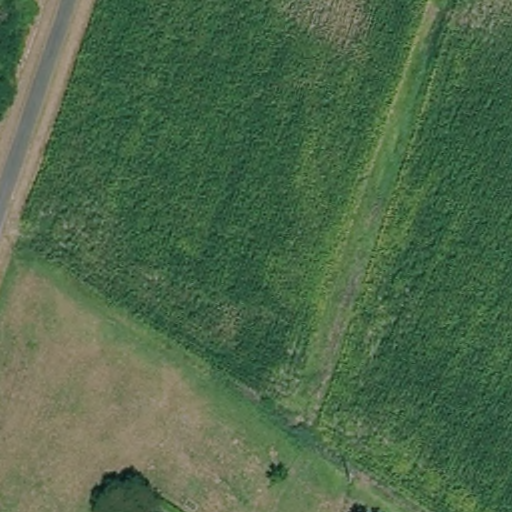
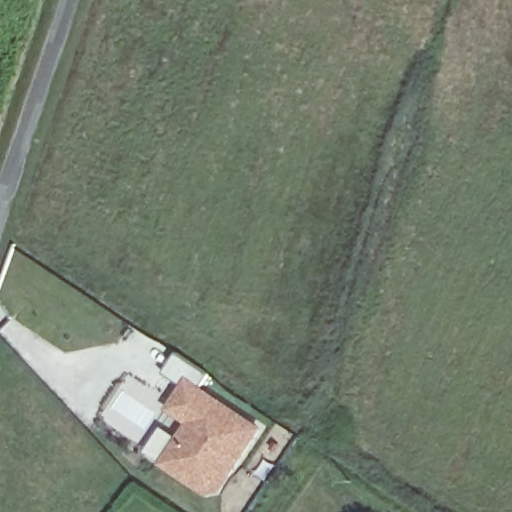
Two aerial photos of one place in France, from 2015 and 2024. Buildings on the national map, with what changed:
new [(159,466),(162,462),(145,451),(162,426),(177,436),(185,424),(165,412),(183,383),(165,373),(178,353),(210,374),(203,386),(265,428),(221,494),(207,497),(159,466)]

